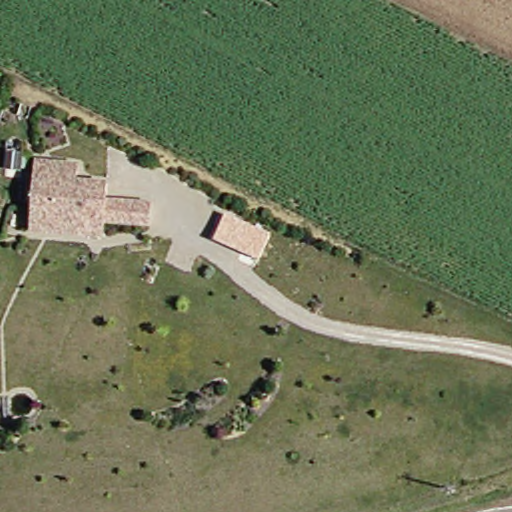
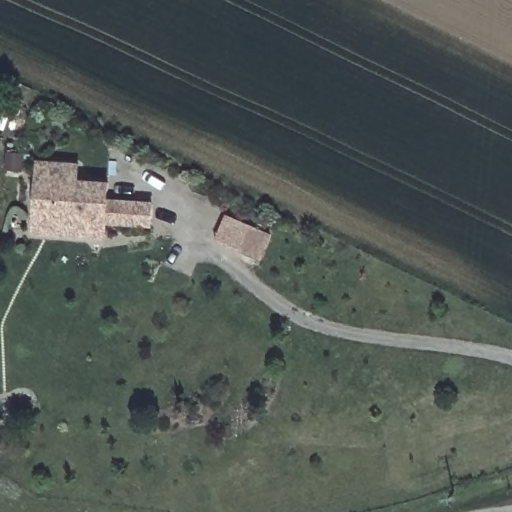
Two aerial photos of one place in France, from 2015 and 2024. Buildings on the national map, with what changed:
unchanged [(26,220),(30,165),(70,167),(69,184),(100,185),(99,203),(144,206),(142,227),(97,225),(96,239),(77,238),(25,234),(26,220)]
unchanged [(272,234),(262,262),(215,242),(226,214),(272,234)]

